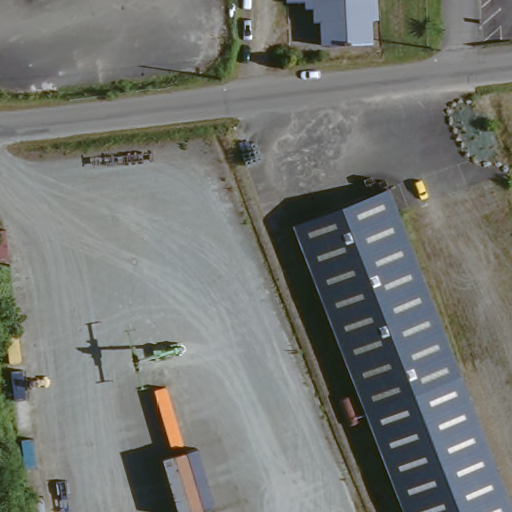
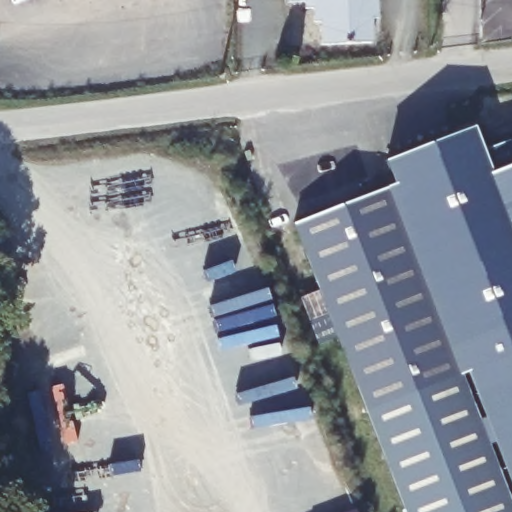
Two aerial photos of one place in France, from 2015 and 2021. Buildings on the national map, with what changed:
unchanged [(366,23),(367,46),(319,48),(317,25),(310,26),(308,12),(302,12),(302,3),(285,4),(284,0),(371,0),(372,22),(366,23)]
new [(458,376),(387,191),(395,188),(384,162),(472,128),(481,153),(510,141),(512,145),(512,490),(466,373),(458,376)]
unchanged [(387,191),(460,381),(365,415),(289,228),(387,191)]
unchanged [(512,509),(512,512),(407,512),(365,415),(460,381),(512,509)]

